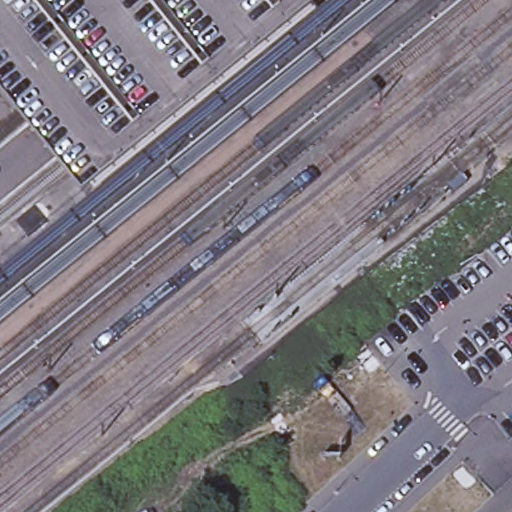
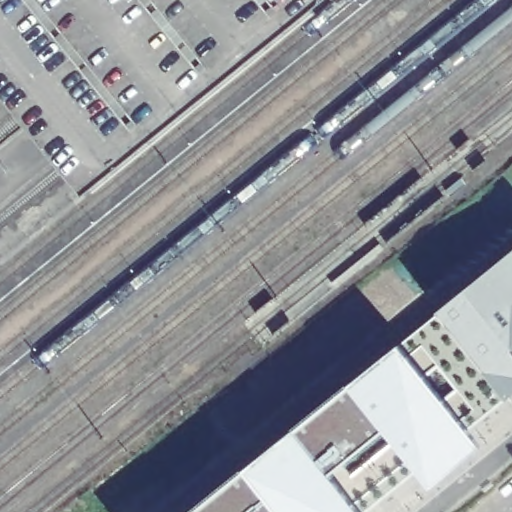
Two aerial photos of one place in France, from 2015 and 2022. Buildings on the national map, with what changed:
demolished [(39,226),(21,240),(13,231),(31,216),(39,226)]
new [(368,512),(195,512),(512,251),(512,394),(368,512)]

